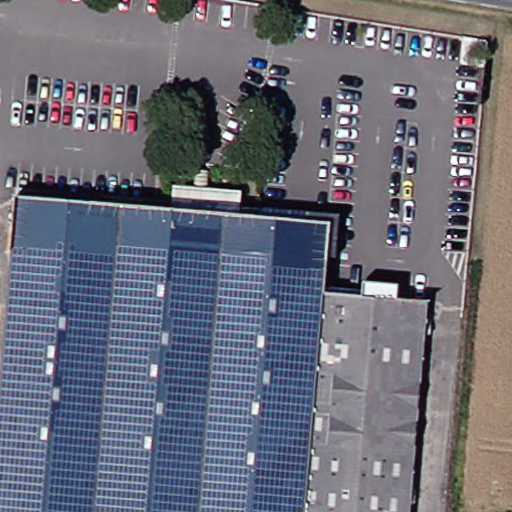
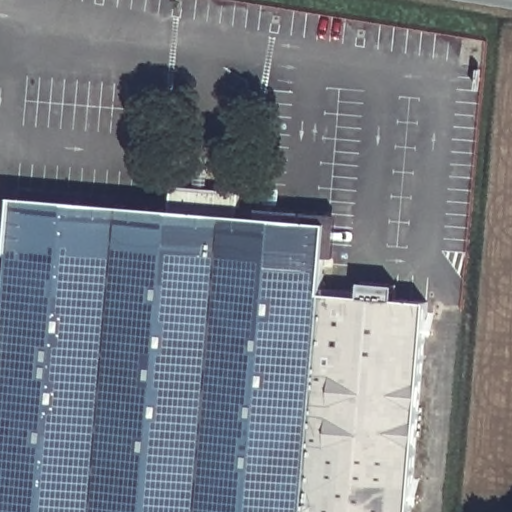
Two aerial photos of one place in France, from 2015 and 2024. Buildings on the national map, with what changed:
unchanged [(11,199),(169,212),(171,184),(239,190),(238,217),(326,225),(321,292),(424,301),(407,512),(0,512),(0,341),(11,199)]

